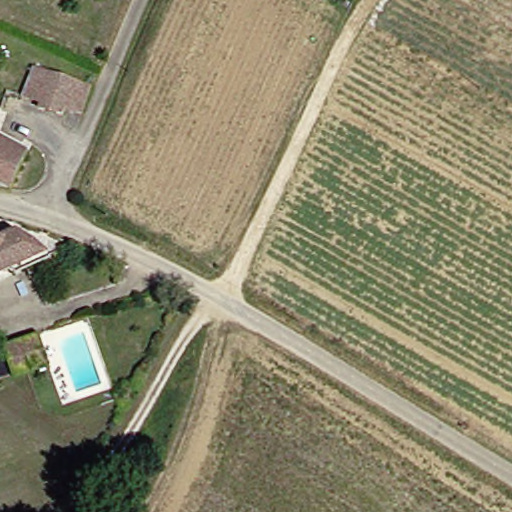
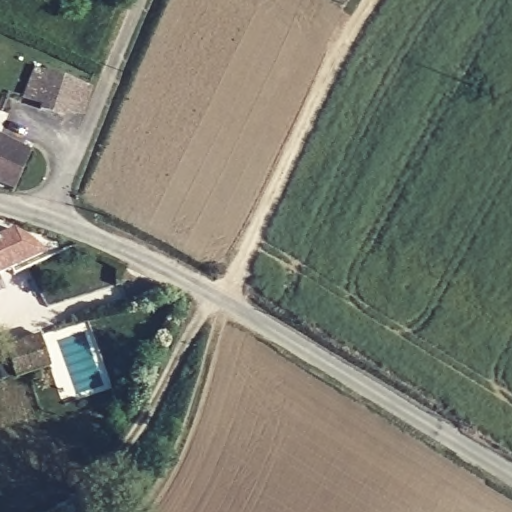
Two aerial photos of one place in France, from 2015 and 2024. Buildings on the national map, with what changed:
unchanged [(88,92),(78,116),(60,111),(56,120),(38,114),(41,104),(19,95),(29,71),(88,92)]
unchanged [(22,151),(21,154),(8,187),(0,184),(0,141),(22,151)]
unchanged [(49,247),(47,256),(0,277),(0,231),(49,247)]
unchanged [(4,351),(42,343),(46,365),(48,371),(17,379),(11,377),(5,355),(4,351)]

